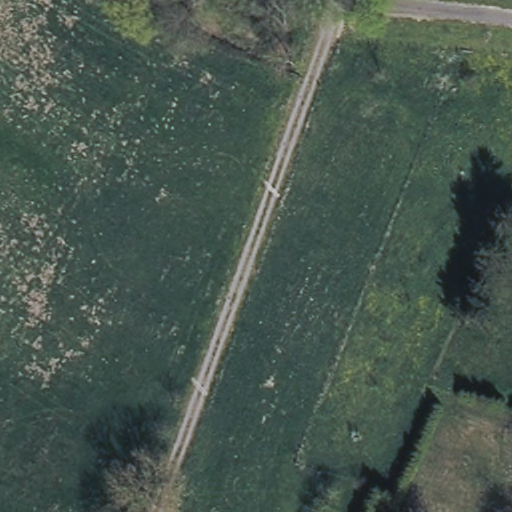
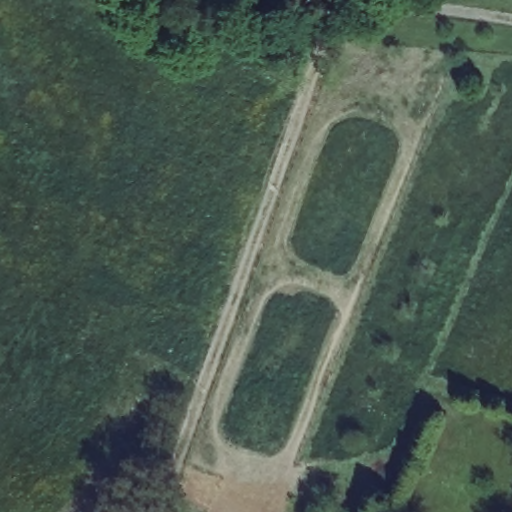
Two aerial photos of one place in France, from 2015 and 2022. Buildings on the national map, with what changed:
[]

